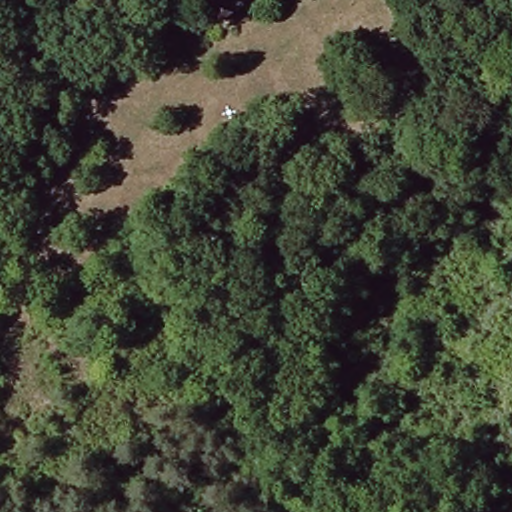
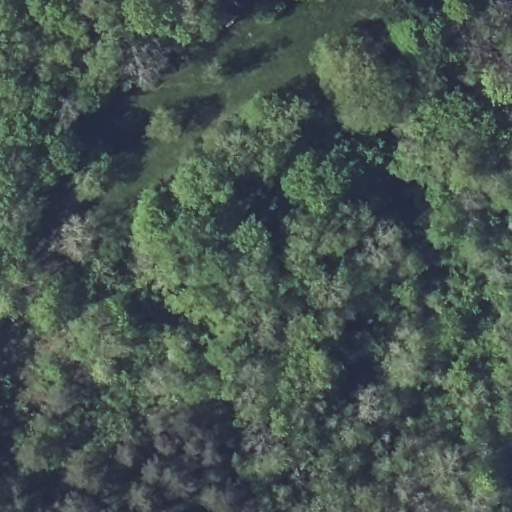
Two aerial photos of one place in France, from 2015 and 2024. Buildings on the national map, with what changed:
unchanged [(206,0),(259,0),(228,26),(206,0)]

